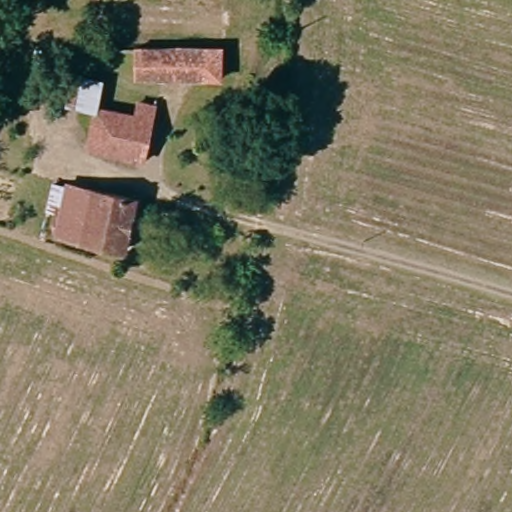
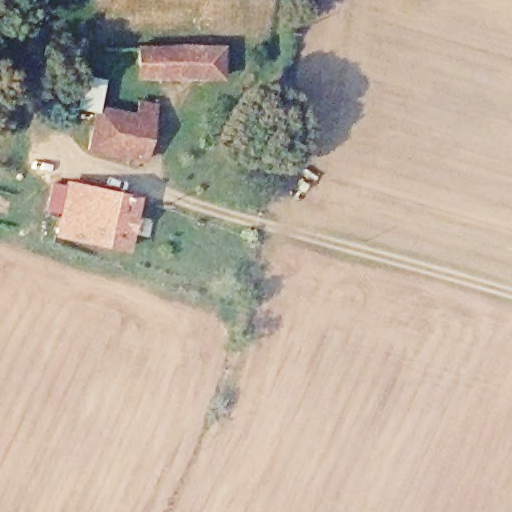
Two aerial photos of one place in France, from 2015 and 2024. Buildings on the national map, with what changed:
unchanged [(237,81),(114,67),(119,41),(239,54),(237,81)]
unchanged [(67,78),(96,82),(91,102),(64,95),(67,78)]
unchanged [(136,97),(159,102),(146,164),(125,160),(127,147),(83,138),(91,102),(132,111),(136,97)]
unchanged [(52,234),(62,184),(130,202),(114,252),(52,234)]

